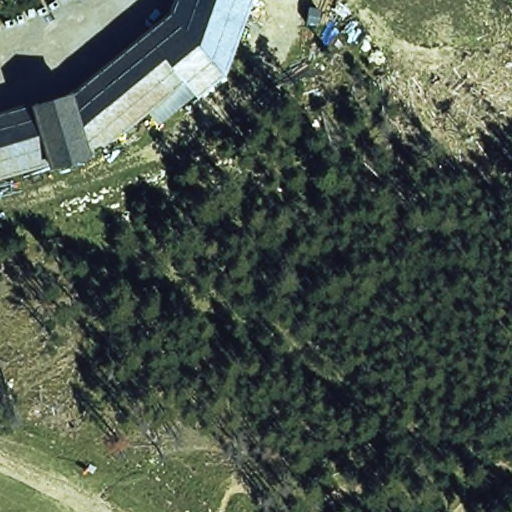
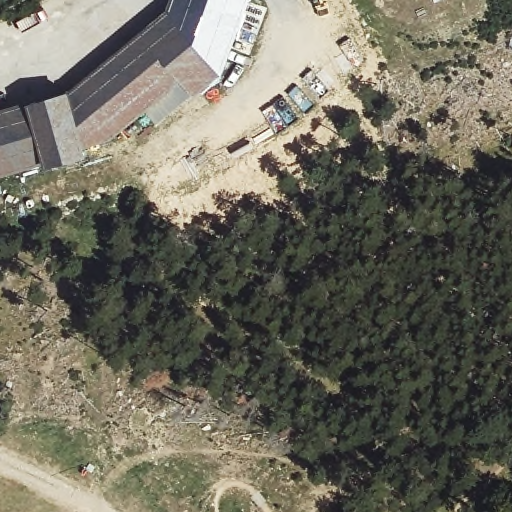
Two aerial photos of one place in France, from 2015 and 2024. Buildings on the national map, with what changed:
unchanged [(173,11),(177,0),(251,0),(223,73),(196,93),(183,77),(110,134),(74,144),(78,154),(50,162),(49,157),(0,172),(0,110),(73,88),(173,11)]

